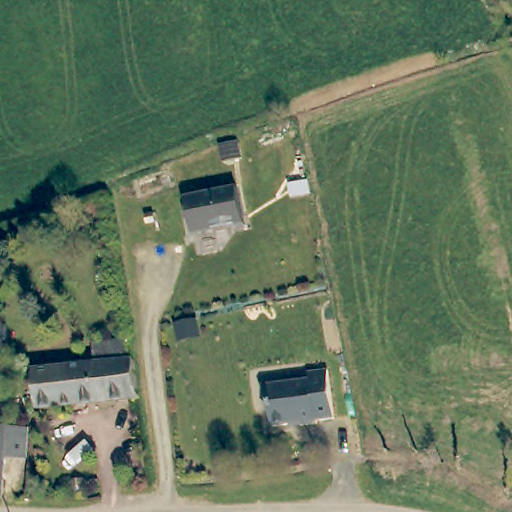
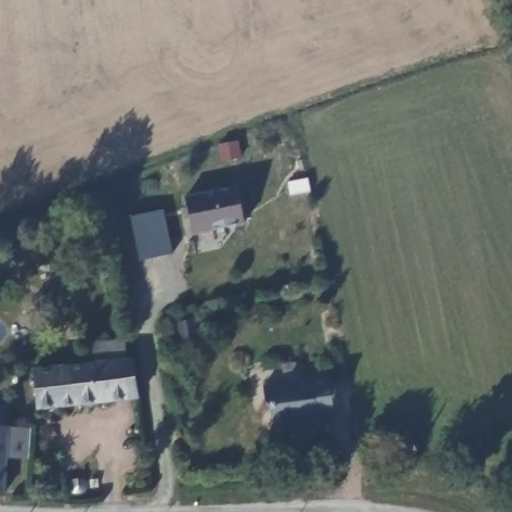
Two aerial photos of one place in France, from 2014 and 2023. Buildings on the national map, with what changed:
unchanged [(243,224),(192,234),(185,198),(236,187),(243,224)]
new [(172,255),(141,261),(132,217),(162,211),(172,255)]
unchanged [(134,361),(138,398),(37,407),(34,370),(134,361)]
unchanged [(331,419),(314,421),(314,423),(297,426),(297,423),(269,427),(267,406),(262,402),(261,386),(307,381),(306,373),(326,371),(331,419)]
unchanged [(7,415),(7,437),(4,507),(2,507),(0,507),(0,415),(7,415)]

